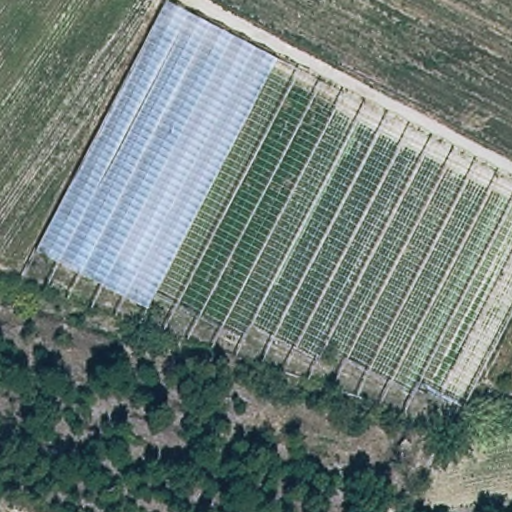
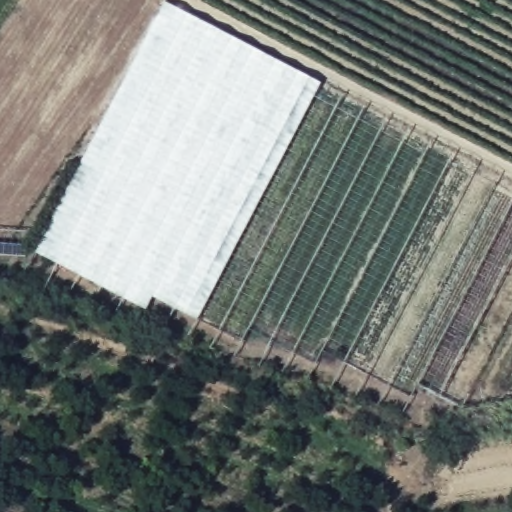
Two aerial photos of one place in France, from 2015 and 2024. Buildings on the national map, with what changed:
unchanged [(326,84),(190,315),(148,311),(33,256),(163,4),(326,84)]

